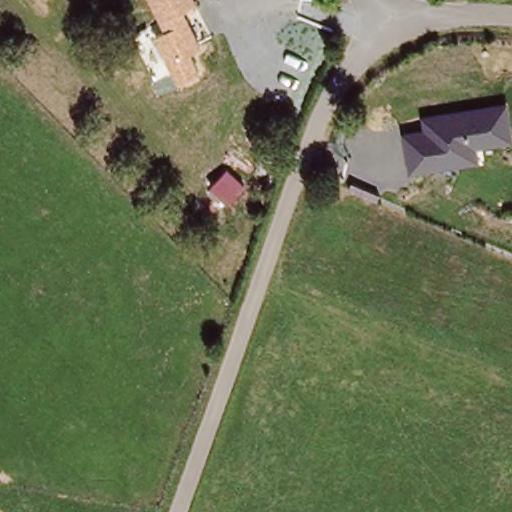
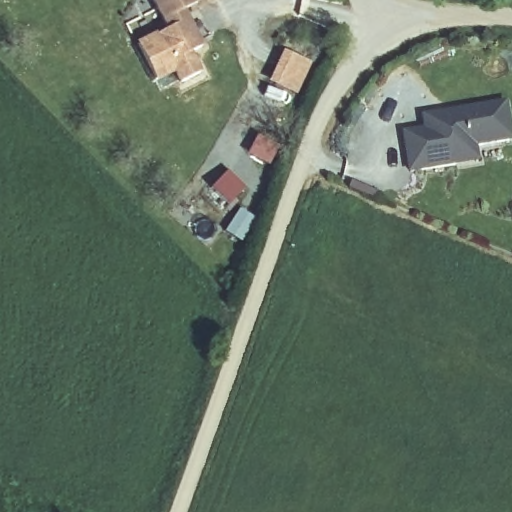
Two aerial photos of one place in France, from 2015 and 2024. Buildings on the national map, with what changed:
unchanged [(202,49),(193,53),(203,74),(177,86),(155,37),(165,30),(152,0),(197,0),(199,4),(186,10),(202,49)]
unchanged [(155,32),(156,36),(155,37),(171,74),(155,80),(135,43),(155,32)]
new [(296,96),(267,82),(282,50),(310,63),(296,96)]
unchanged [(509,102),(512,120),(512,146),(478,151),(480,164),(408,176),(402,134),(424,130),(422,117),(509,102)]

